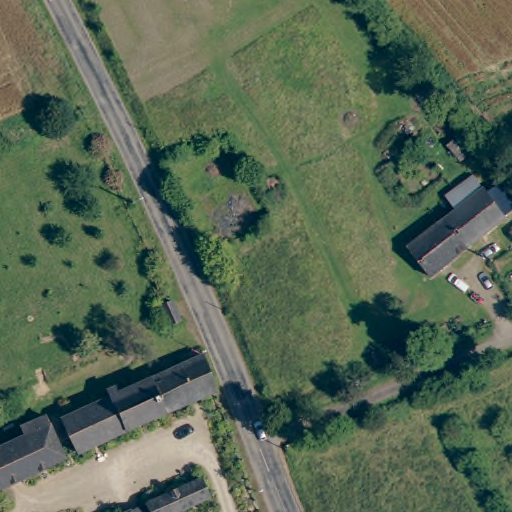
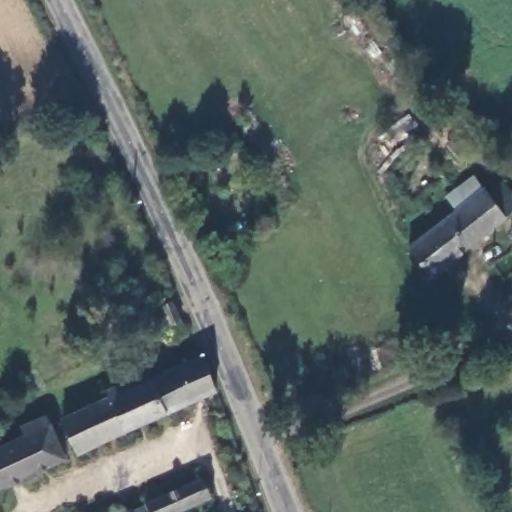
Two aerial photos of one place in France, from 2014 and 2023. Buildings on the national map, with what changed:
unchanged [(504,181),(512,193),(512,212),(467,246),(446,219),(484,189),(487,194),(504,181)]
unchanged [(428,276),(408,247),(446,219),(467,246),(428,276)]
unchanged [(512,231),(512,237),(509,233),(512,231)]
unchanged [(172,318),(162,323),(153,305),(164,299),(172,318)]
unchanged [(94,447),(77,455),(62,422),(94,407),(108,400),(106,394),(114,391),(116,398),(151,380),(197,357),(212,392),(94,447)]
unchanged [(61,462),(0,489),(0,452),(24,441),(21,433),(44,423),(47,429),(61,462)]
unchanged [(201,504),(184,512),(145,512),(194,488),(201,504)]

